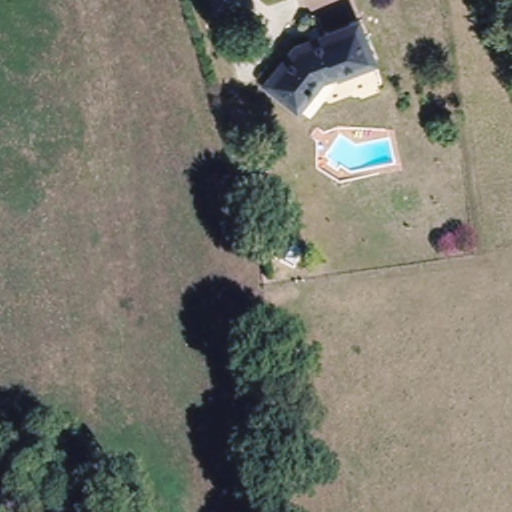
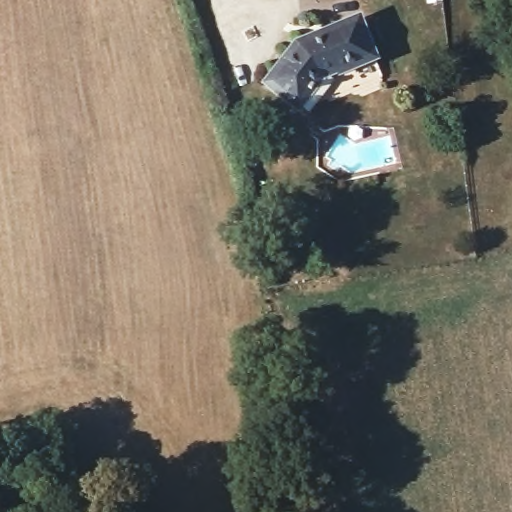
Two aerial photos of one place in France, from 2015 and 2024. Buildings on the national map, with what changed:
unchanged [(332,76),(330,70),(324,70),(293,110),(263,86),(291,47),(355,22),(371,62),(332,76)]

